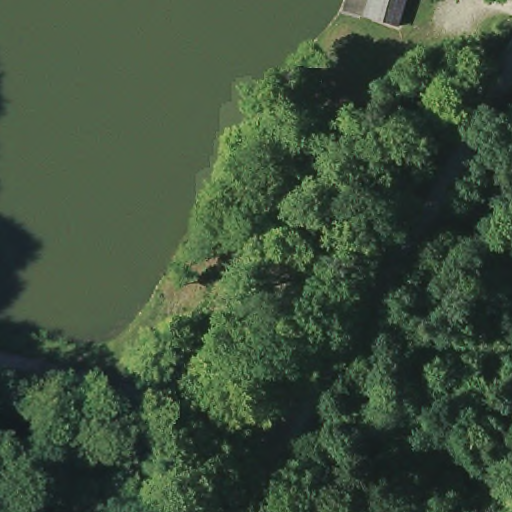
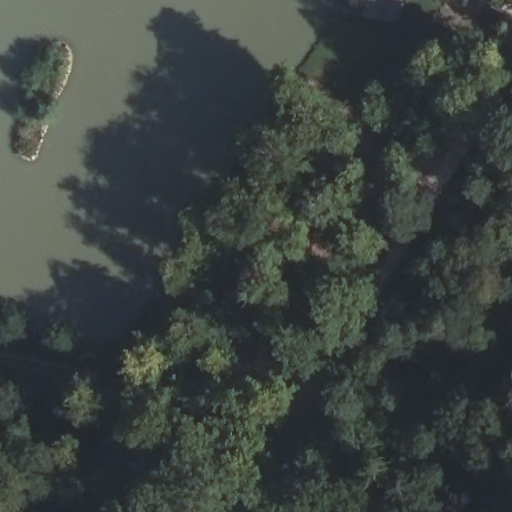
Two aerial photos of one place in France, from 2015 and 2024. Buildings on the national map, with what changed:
unchanged [(350,0),(413,0),(394,39),(346,13),(350,0)]

